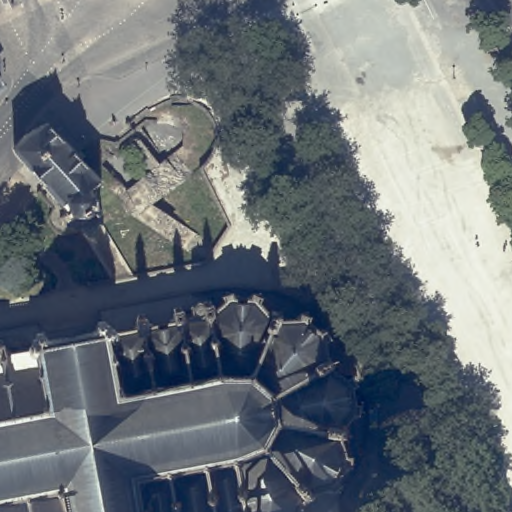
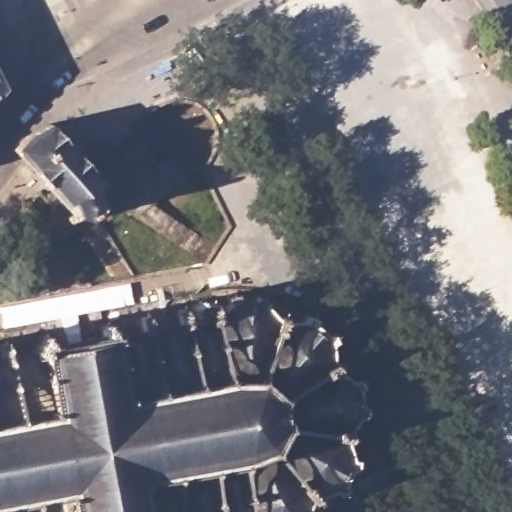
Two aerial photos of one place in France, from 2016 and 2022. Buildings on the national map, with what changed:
unchanged [(478,43),(499,33),(510,56),(489,66),(478,43)]
unchanged [(0,89),(0,86),(1,88),(0,89)]
unchanged [(69,217),(77,209),(54,185),(24,147),(35,135),(59,124),(86,159),(104,187),(97,194),(104,202),(109,214),(105,216),(103,213),(90,218),(85,215),(74,224),(69,217)]
unchanged [(0,351),(0,342),(6,341),(8,355),(32,353),(32,349),(36,349),(36,343),(40,343),(40,334),(45,333),(50,333),(52,346),(103,336),(101,324),(110,322),(112,328),(116,328),(118,332),(123,331),(123,335),(145,331),(143,316),(153,316),(155,328),(183,323),(179,308),(189,307),(192,320),(203,319),(198,316),(196,305),(203,297),(213,303),(217,302),(219,314),(232,304),(230,297),(238,295),(239,302),(255,302),(261,296),(266,300),(260,306),(275,322),(279,315),(285,318),(283,324),(307,322),(308,316),(316,318),(314,326),(326,337),(337,333),(340,340),(329,344),(323,366),(332,364),(334,373),(329,376),(353,382),(361,377),(365,384),(356,389),(361,407),(367,409),(366,418),(356,415),(338,428),(344,429),(343,439),(335,439),(348,457),(356,457),(356,466),(349,466),(339,480),(342,488),(335,491),(333,486),(311,491),(314,497),(309,501),(304,498),(298,512),(0,512),(0,359),(1,359),(0,351)]

